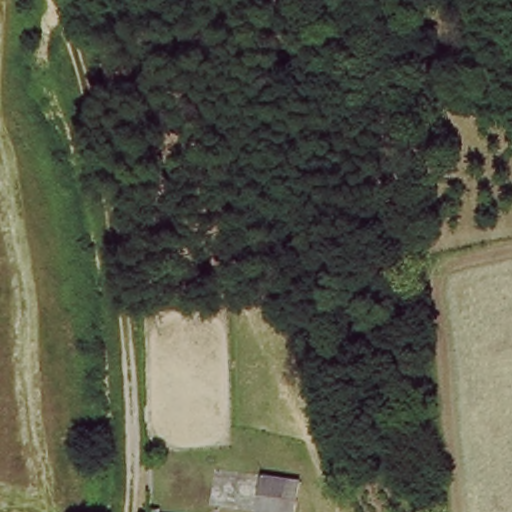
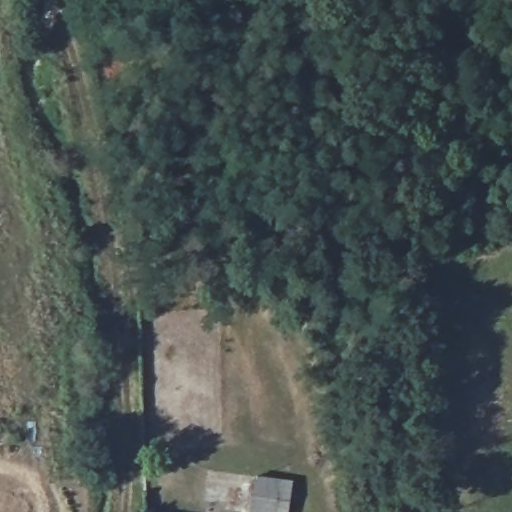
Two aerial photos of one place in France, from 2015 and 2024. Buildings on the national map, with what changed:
unchanged [(249,477),(278,478),(278,512),(249,512),(249,477)]

